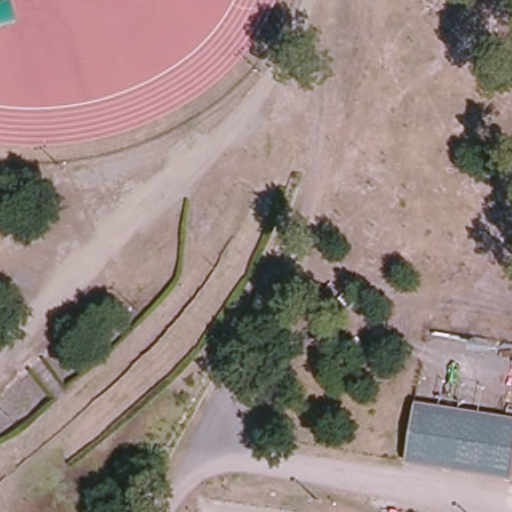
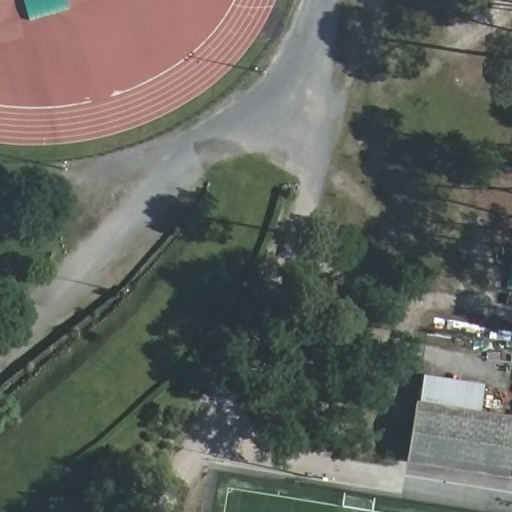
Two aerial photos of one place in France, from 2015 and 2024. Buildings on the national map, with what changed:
unchanged [(28,10),(26,0),(51,0),(52,5),(28,10)]
unchanged [(418,403),(423,377),(487,385),(485,414),(512,416),(512,478),(410,463),(418,403)]

